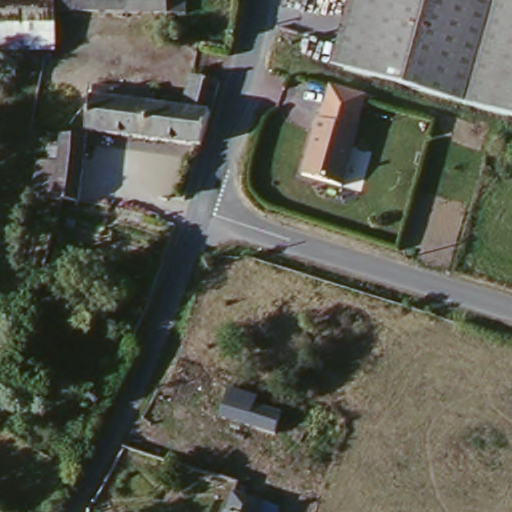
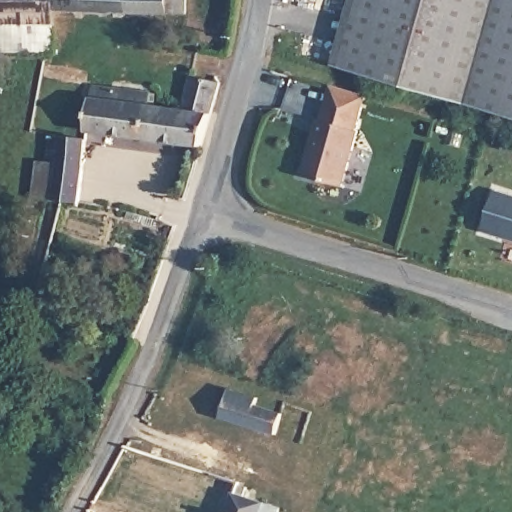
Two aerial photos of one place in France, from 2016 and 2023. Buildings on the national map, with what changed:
unchanged [(55,57),(0,60),(0,0),(56,0),(55,19),(55,57)]
unchanged [(56,0),(187,0),(185,21),(55,19),(56,0)]
unchanged [(332,64),(350,0),(512,0),(512,115),(332,64)]
unchanged [(87,132),(93,87),(152,94),(151,107),(184,112),(192,77),(220,82),(216,95),(206,129),(201,148),(87,132)]
unchanged [(328,85),(368,97),(358,129),(318,117),(328,85)]
unchanged [(318,117),(358,129),(342,184),(302,173),(318,117)]
unchanged [(61,202),(33,199),(37,162),(58,166),(59,152),(52,152),(53,142),(61,144),(62,137),(86,140),(80,203),(61,202)]
new [(495,190),(512,195),(512,240),(482,231),(495,190)]
unchanged [(236,390),(263,398),(261,406),(275,410),(287,411),(280,436),(222,417),(236,390)]
unchanged [(235,483),(234,486),(241,488),(239,496),(275,508),(274,512),(223,512),(232,482),(235,483)]

